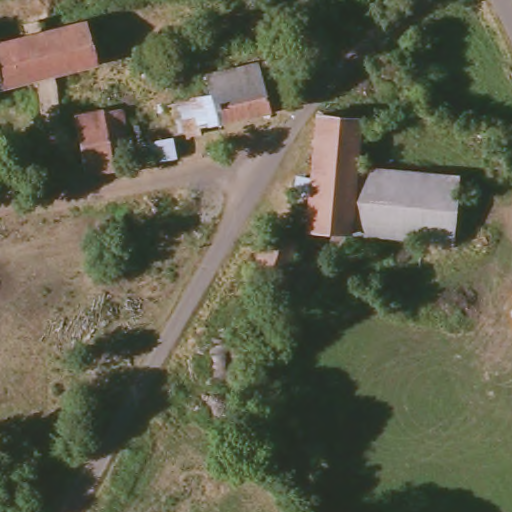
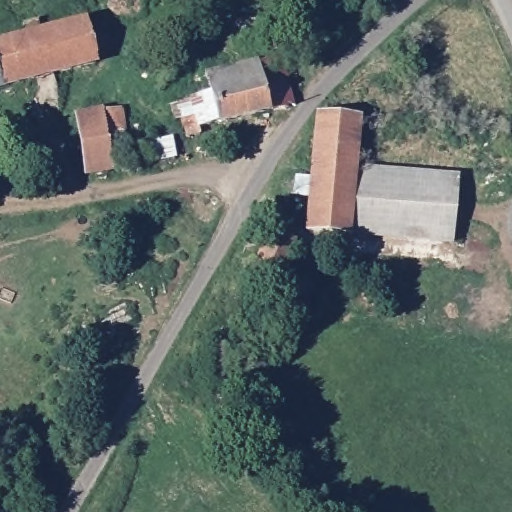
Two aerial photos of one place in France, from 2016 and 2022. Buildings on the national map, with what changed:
unchanged [(84,21),(95,63),(0,88),(0,42),(84,21)]
unchanged [(276,57),(288,106),(264,111),(253,62),(276,57)]
unchanged [(253,62),(264,111),(212,123),(200,75),(253,62)]
unchanged [(117,110),(125,165),(107,169),(106,159),(98,113),(117,110)]
unchanged [(108,170),(81,175),(71,115),(97,111),(98,113),(106,159),(107,169),(108,170)]
unchanged [(293,177),(307,180),(312,115),(353,118),(349,168),(453,176),(447,242),(303,230),(305,198),(289,195),(293,177)]
unchanged [(230,139),(230,146),(213,149),(212,142),(230,139)]
unchanged [(169,157),(150,161),(147,144),(166,141),(169,157)]
unchanged [(257,261),(266,232),(294,241),(285,269),(257,261)]

